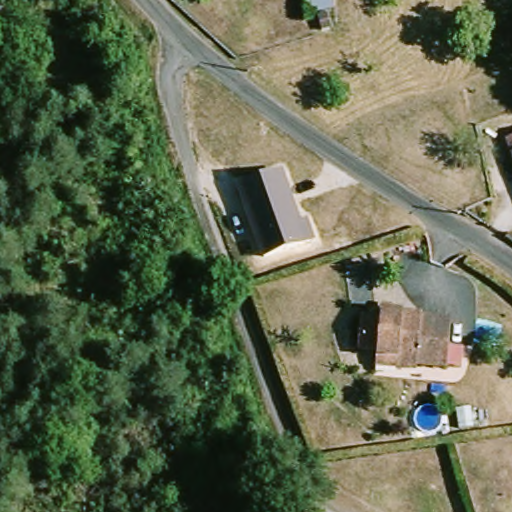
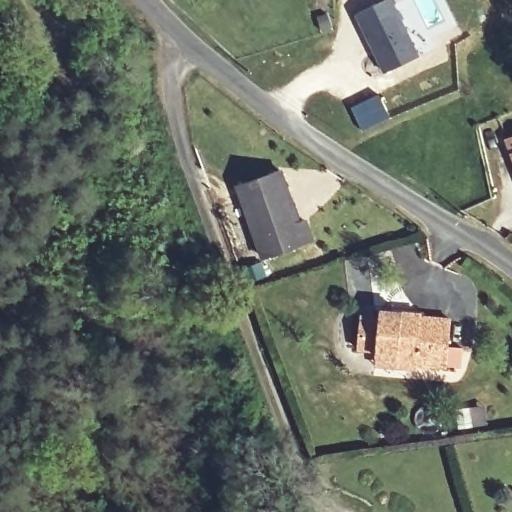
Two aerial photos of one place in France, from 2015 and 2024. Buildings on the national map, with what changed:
new [(419,56),(383,73),(355,15),(386,0),(391,0),(419,56)]
new [(379,98),(389,126),(358,134),(350,109),(379,98)]
unchanged [(284,169),(302,220),(309,218),(317,241),(262,258),(237,185),(284,169)]
unchanged [(377,368),(380,354),(356,350),(362,318),(382,322),(383,313),(425,320),(423,324),(455,329),(447,374),(415,368),(415,374),(377,368)]

